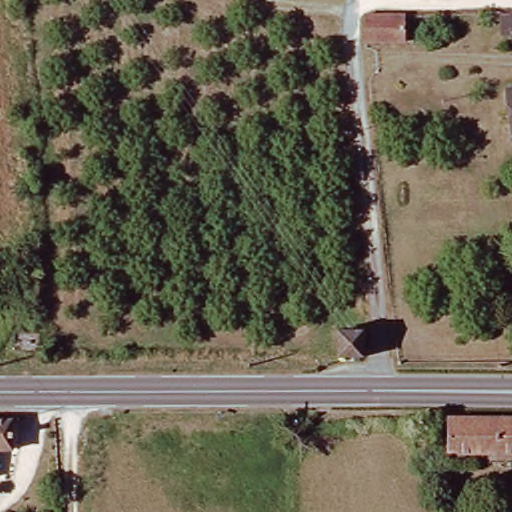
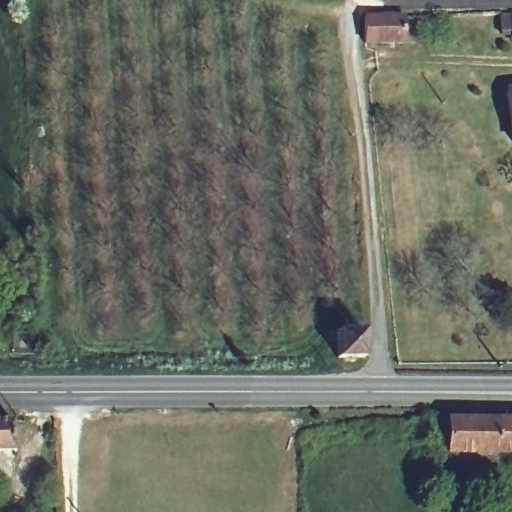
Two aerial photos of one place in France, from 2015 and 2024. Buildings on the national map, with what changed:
unchanged [(407,17),(407,45),(369,46),(365,16),(407,17)]
unchanged [(500,16),(512,16),(512,37),(502,37),(500,16)]
unchanged [(448,417),(512,417),(512,452),(449,452),(448,417)]
unchanged [(0,452),(0,421),(11,421),(12,452),(0,452)]

